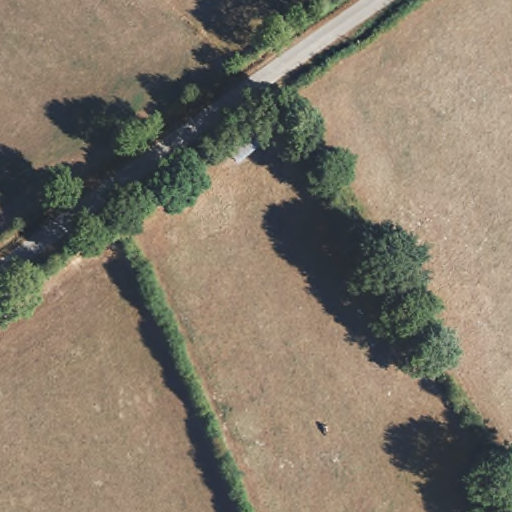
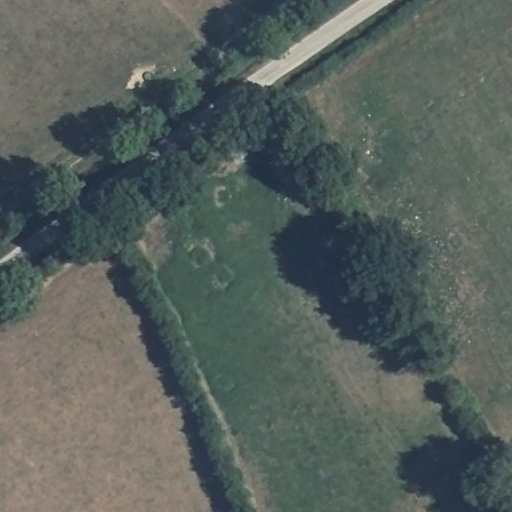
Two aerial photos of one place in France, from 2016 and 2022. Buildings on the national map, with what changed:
unchanged [(269,147),(247,162),(231,141),(251,127),(269,147)]

